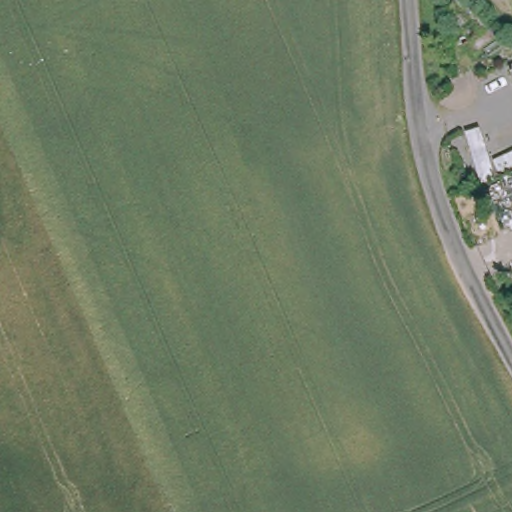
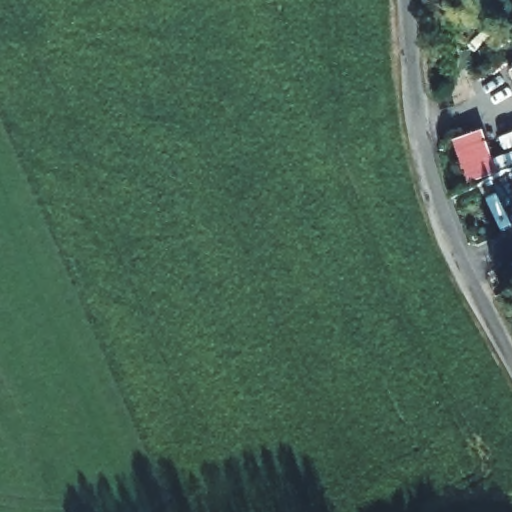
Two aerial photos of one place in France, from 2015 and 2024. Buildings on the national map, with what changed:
unchanged [(507,77),(512,72),(512,82),(507,77)]
new [(498,176),(467,186),(453,143),(484,131),(498,176)]

